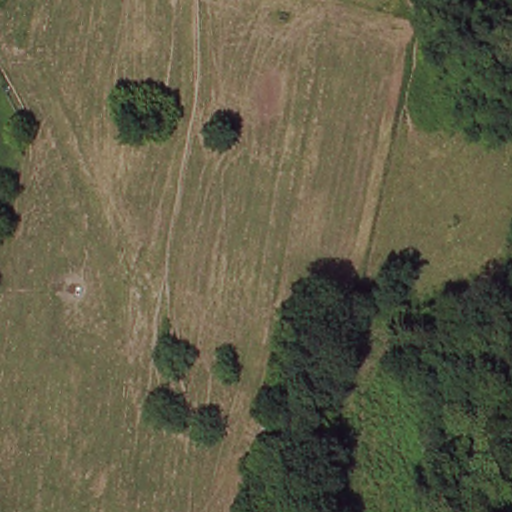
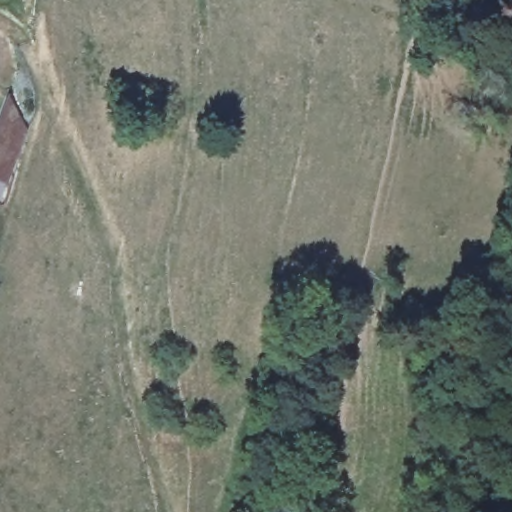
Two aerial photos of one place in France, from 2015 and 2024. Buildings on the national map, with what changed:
new [(5,184),(0,182),(0,114),(7,95),(25,130),(5,184)]

